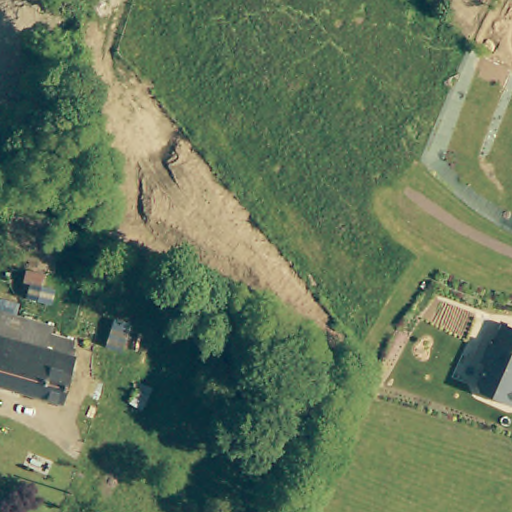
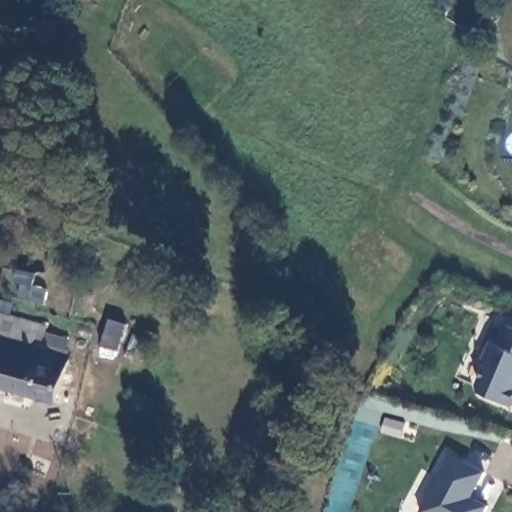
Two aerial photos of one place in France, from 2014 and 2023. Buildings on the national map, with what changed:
unchanged [(0,322),(1,316),(54,331),(49,350),(0,336),(0,322)]
unchanged [(483,361),(478,358),(487,338),(491,341),(500,320),(512,325),(512,400),(507,402),(475,388),(473,382),(483,361)]
unchanged [(61,405),(0,386),(0,336),(49,350),(75,357),(61,405)]
new [(471,485),(467,493),(484,502),(478,512),(418,512),(414,510),(445,451),(479,468),(471,485)]

